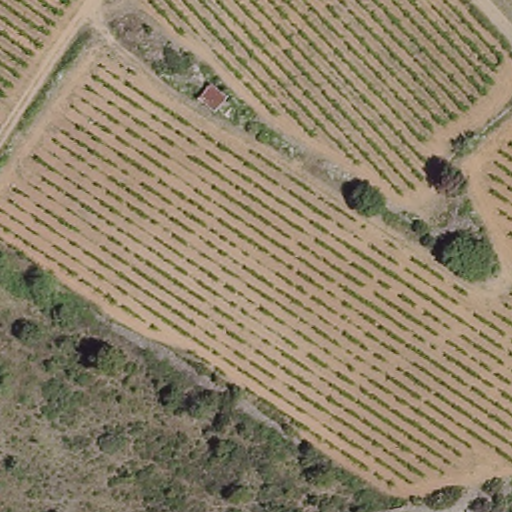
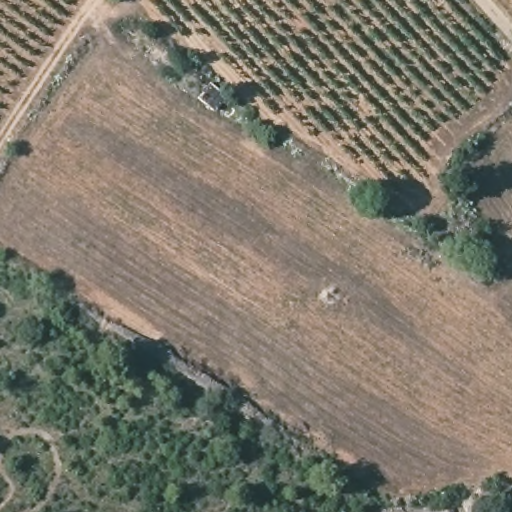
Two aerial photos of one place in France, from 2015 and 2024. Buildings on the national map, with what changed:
unchanged [(228,96),(215,111),(200,99),(212,84),(228,96)]

